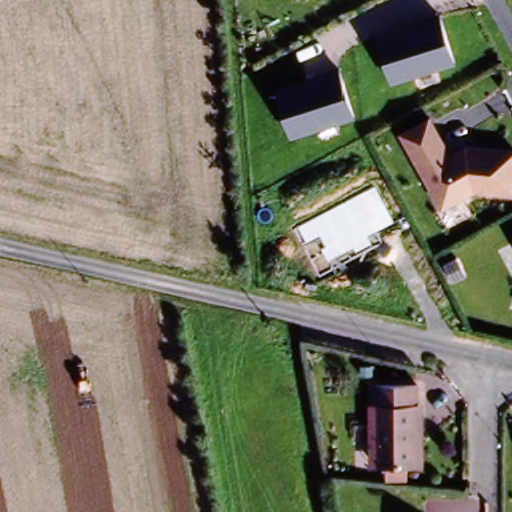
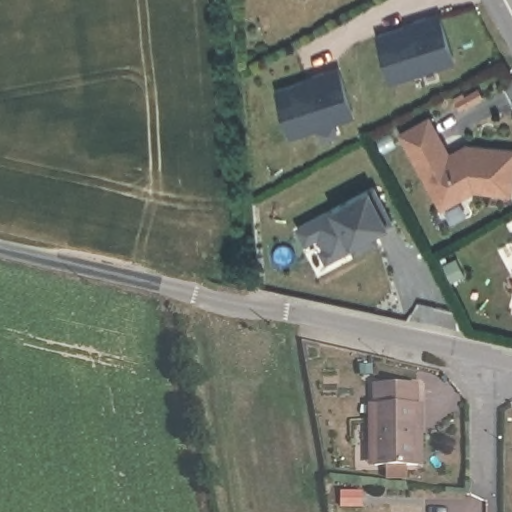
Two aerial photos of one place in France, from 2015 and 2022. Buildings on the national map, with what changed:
unchanged [(460,57),(401,76),(384,33),(444,13),(460,57)]
unchanged [(360,111),(296,132),(279,88),(347,66),(360,111)]
unchanged [(447,208),(401,130),(436,112),(454,141),(512,148),(512,191),(477,189),(447,208)]
new [(394,223),(375,232),(379,241),(353,254),(351,250),(325,264),(317,248),(322,246),(318,238),(306,245),(297,227),(375,187),(394,223)]
unchanged [(381,479),(381,466),(370,466),(369,385),(412,384),(413,466),(401,466),(401,478),(381,479)]

